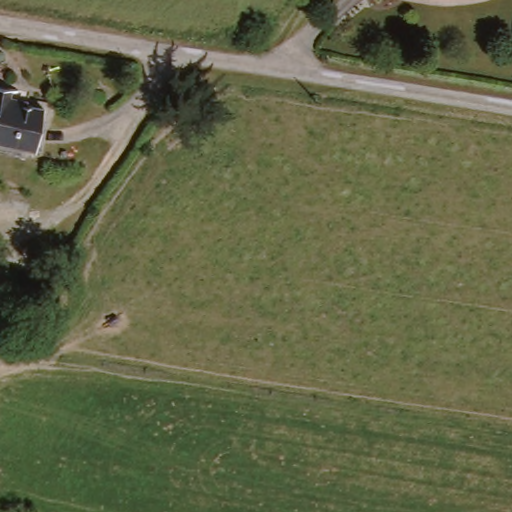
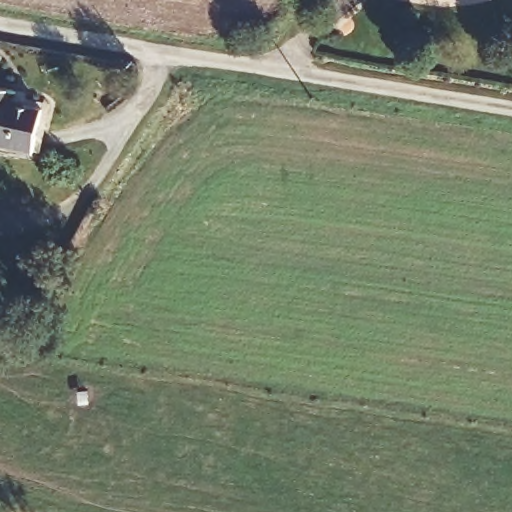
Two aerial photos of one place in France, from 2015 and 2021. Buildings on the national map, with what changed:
unchanged [(9,111),(40,114),(35,158),(0,152),(0,93),(10,95),(9,111)]

